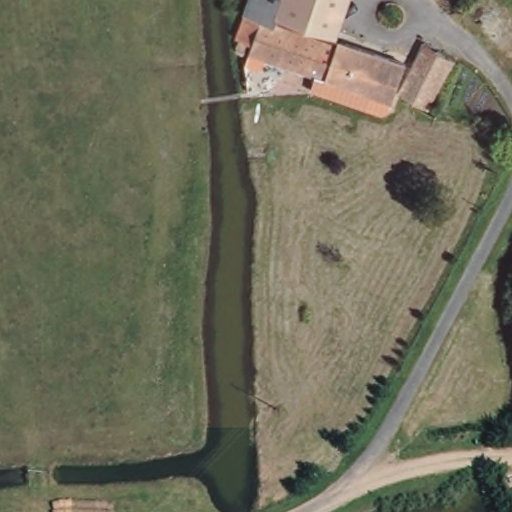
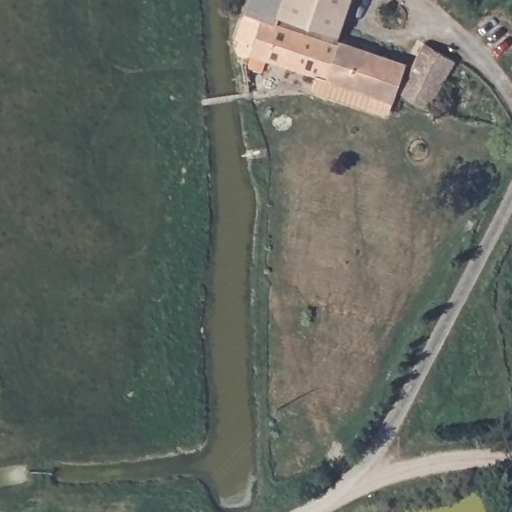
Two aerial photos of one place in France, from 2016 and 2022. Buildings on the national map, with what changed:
unchanged [(364,54),(366,49),(398,60),(396,66),(408,70),(392,119),(316,94),(321,78),(268,60),(265,72),(244,65),(248,54),(234,49),(251,0),(286,0),(278,25),(309,36),(337,45),(364,54)]
unchanged [(337,45),(309,36),(278,25),(286,0),(351,0),(337,45)]
unchanged [(460,61),(435,113),(409,101),(435,48),(460,61)]

